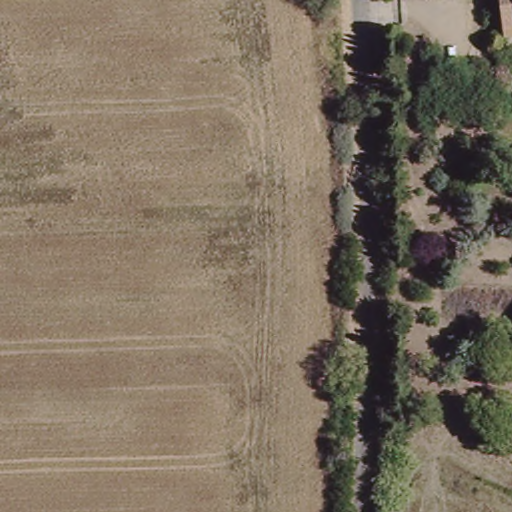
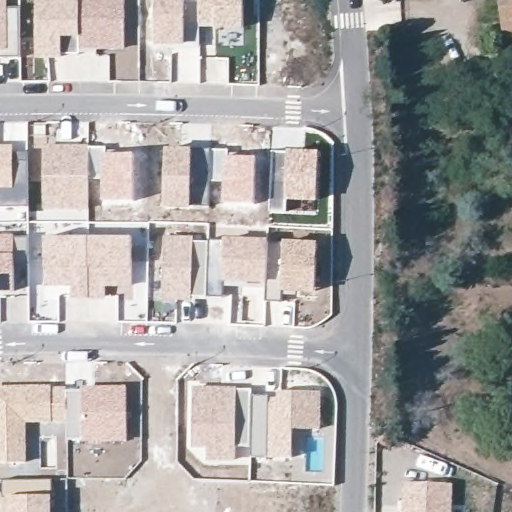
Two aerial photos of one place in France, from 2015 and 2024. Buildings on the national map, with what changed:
new [(20,7),(21,56),(0,56),(0,0),(8,0),(9,8),(20,7)]
new [(80,0),(79,38),(63,38),(63,56),(34,58),(35,0),(80,0)]
new [(80,0),(125,0),(126,49),(115,50),(100,51),(79,54),(79,38),(80,0)]
new [(187,0),(187,43),(185,43),(185,46),(174,48),(172,48),(167,48),(152,48),(153,0),(187,0)]
new [(199,28),(198,0),(244,0),(244,31),(199,28)]
unchanged [(501,0),(512,0),(512,32),(505,33),(505,24),(501,0)]
new [(15,143),(14,189),(0,190),(0,143),(2,143),(15,143)]
new [(47,145),(73,144),(105,146),(105,152),(101,180),(91,180),(90,211),(42,210),(41,146),(47,145)]
new [(165,147),(194,149),(194,167),(192,209),(163,208),(165,147)]
new [(272,148),(305,148),(321,149),(319,202),(288,201),(288,213),(270,213),(272,148)]
new [(227,155),(226,155),(222,182),(210,182),(208,207),(192,206),(194,167),(194,149),(228,150),(227,155)]
new [(0,207),(0,190),(14,189),(15,152),(27,155),(28,206),(0,207)]
new [(101,180),(105,152),(135,153),(135,202),(101,203),(101,180)]
new [(222,182),(226,155),(227,155),(257,156),(255,205),(222,204),(222,182)]
new [(14,232),(15,292),(0,292),(0,233),(14,232)]
new [(222,239),(222,237),(269,238),(267,285),(240,286),(238,286),(223,285),(223,297),(208,298),(192,298),(192,300),(160,299),(164,233),(194,234),(194,240),(209,240),(222,239)]
new [(45,236),(134,237),(133,295),(118,295),(119,288),(107,288),(107,299),(70,300),(70,288),(43,287),(45,236)]
new [(267,285),(281,285),(282,239),(319,241),(317,294),(281,293),(281,301),(265,300),(267,285)]
new [(23,383),(67,385),(67,388),(66,424),(40,424),(27,424),(27,462),(0,462),(0,384),(23,383)]
new [(67,388),(127,384),(129,441),(67,441),(66,424),(67,388)]
new [(190,384),(253,388),(253,393),(269,392),(268,458),(237,458),(237,463),(206,463),(205,449),(190,449),(190,384)]
new [(269,392),(322,390),(322,428),(294,429),(293,458),(268,458),(269,392)]
new [(52,478),(53,512),(5,512),(2,480),(52,478)]
new [(404,481),(454,483),(453,512),(400,512),(404,481)]

